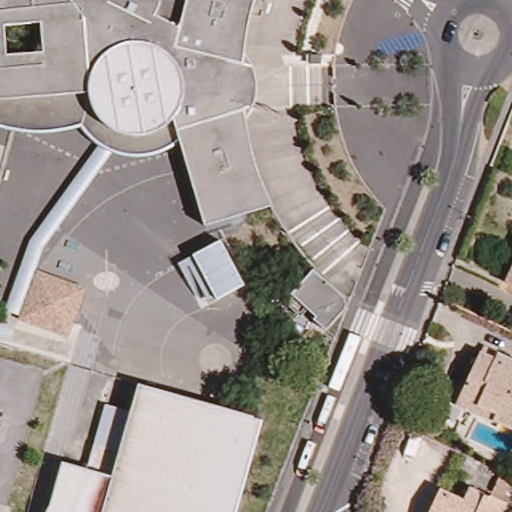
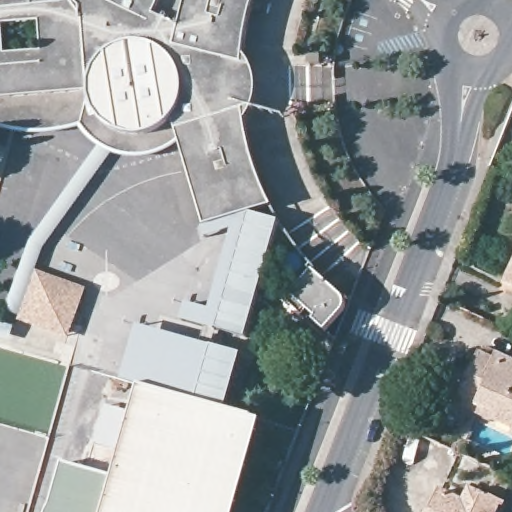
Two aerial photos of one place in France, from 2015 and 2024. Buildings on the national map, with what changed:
unchanged [(148,155),(139,156),(131,156),(121,155),(112,153),(106,150),(99,146),(81,128),(41,132),(0,128),(0,0),(255,0),(253,7),(249,26),(246,42),(244,67),(242,90),(243,112),(245,127),(249,141),(253,158),(256,171),(261,183),(267,198),(272,209),(204,229),(192,187),(178,142),(157,152),(148,155)]
unchanged [(106,150),(112,153),(43,245),(37,261),(11,327),(0,325),(0,322),(28,244),(53,211),(99,146),(106,150)]
new [(256,214),(279,220),(247,336),(183,320),(187,302),(211,309),(234,230),(208,239),(204,229),(256,214)]
unchanged [(512,266),(512,287),(504,283),(512,266)]
unchanged [(324,310),(315,302),(305,312),(290,298),(317,267),(347,295),(345,308),(329,325),(319,316),(324,310)]
unchanged [(68,334),(21,316),(36,277),(83,295),(68,334)]
new [(136,325),(210,343),(211,342),(242,354),(225,409),(143,386),(122,378),(136,325)]
unchanged [(479,354),(483,346),(498,353),(497,356),(512,363),(512,428),(493,419),(457,402),(460,396),(479,354)]
unchanged [(249,446),(232,505),(231,512),(52,512),(54,509),(55,507),(67,464),(92,471),(99,446),(124,453),(143,386),(258,418),(249,446)]
new [(106,404),(135,413),(124,453),(99,446),(92,471),(87,469),(106,404)]
unchanged [(498,492),(487,487),(493,474),(504,479),(498,492)]
unchanged [(496,499),(490,512),(424,512),(436,487),(459,497),(465,485),(496,499)]

